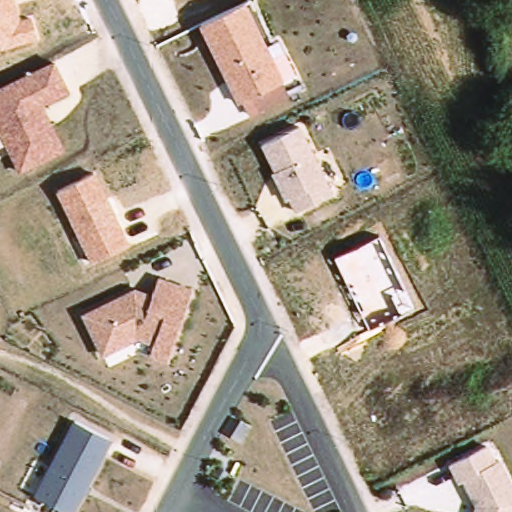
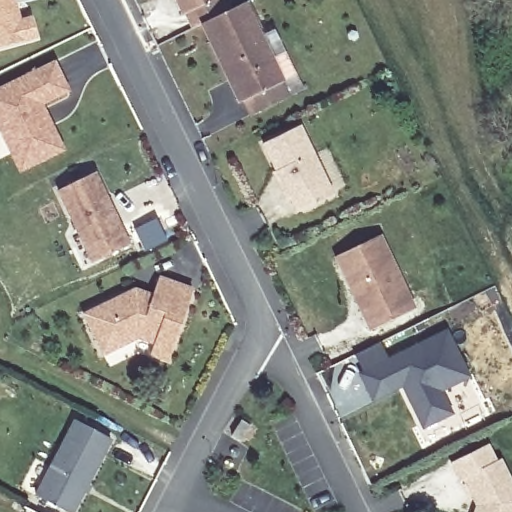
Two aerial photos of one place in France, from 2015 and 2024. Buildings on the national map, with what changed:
unchanged [(34,13),(39,35),(0,45),(0,0),(15,0),(19,16),(34,13)]
unchanged [(199,24),(190,28),(184,14),(182,16),(174,0),(227,0),(231,7),(199,24)]
unchanged [(290,95),(250,114),(244,100),(237,103),(199,24),(245,1),(290,95)]
unchanged [(43,105),(65,152),(21,174),(0,128),(0,86),(56,60),(71,91),(43,105)]
unchanged [(300,126),(334,195),(297,211),(294,202),(289,204),(278,182),(282,180),(265,142),(300,126)]
unchanged [(130,244),(91,262),(58,190),(97,171),(130,244)]
unchanged [(415,307),(370,330),(335,256),(379,234),(415,307)]
unchanged [(134,287),(152,293),(160,275),(197,287),(170,363),(149,356),(152,343),(138,339),(102,357),(82,313),(134,287)]
new [(381,340),(388,356),(448,327),(472,375),(444,390),(455,413),(422,427),(402,387),(372,402),(357,372),(360,371),(354,353),(381,340)]
unchanged [(113,437),(76,512),(71,512),(34,493),(73,417),(113,437)]
unchanged [(490,443),(496,458),(502,456),(512,475),(512,512),(474,512),(476,506),(465,481),(457,485),(449,463),(490,443)]

